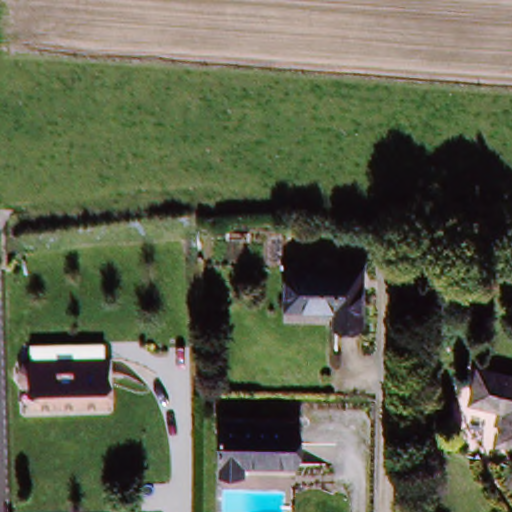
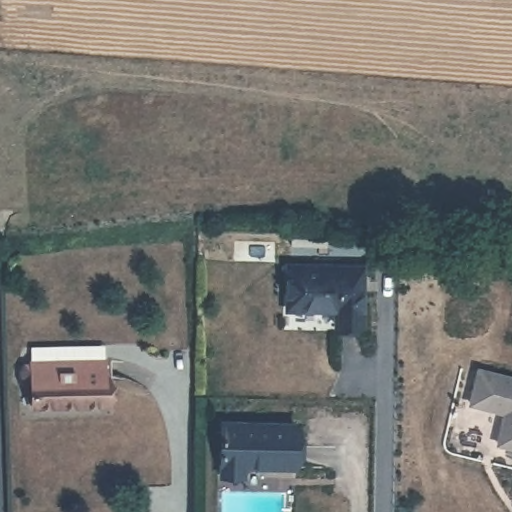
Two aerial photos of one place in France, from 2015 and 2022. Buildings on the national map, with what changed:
unchanged [(335,326),(334,311),(290,309),(290,263),(365,266),(363,327),(335,326)]
unchanged [(30,382),(30,366),(51,366),(102,365),(102,382),(106,382),(105,408),(30,410),(30,382)]
unchanged [(503,412),(474,405),(482,371),(512,378),(512,448),(496,445),(503,412)]
unchanged [(244,468),(244,476),(218,476),(219,423),(292,423),(292,467),(244,468)]

